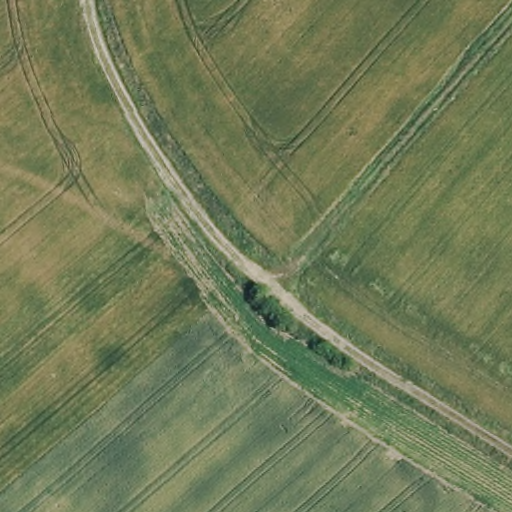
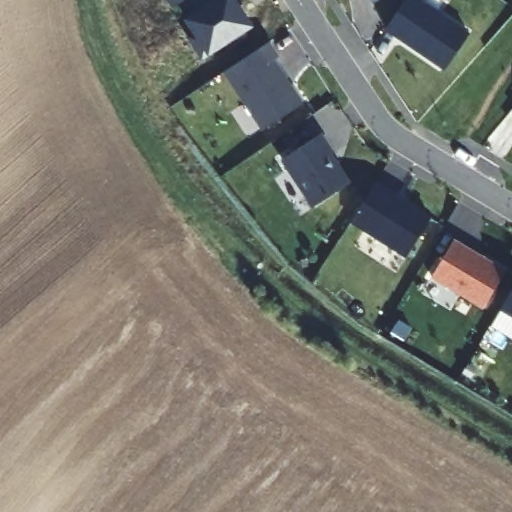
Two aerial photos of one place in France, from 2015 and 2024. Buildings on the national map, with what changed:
new [(189,15),(181,2),(173,7),(168,0),(239,0),(256,26),(208,57),(183,19),(189,15)]
new [(471,32),(444,70),(386,30),(406,0),(423,0),(471,32)]
new [(271,64),(266,67),(296,111),(259,137),(217,79),(261,50),(271,64)]
new [(314,206),(283,159),(324,132),(336,151),(333,152),(351,181),(314,206)]
new [(406,257),(352,221),(378,179),(433,215),(406,257)]
new [(484,307),(431,276),(454,237),(507,268),(484,307)]
new [(501,308),(512,290),(512,315),(501,308)]

